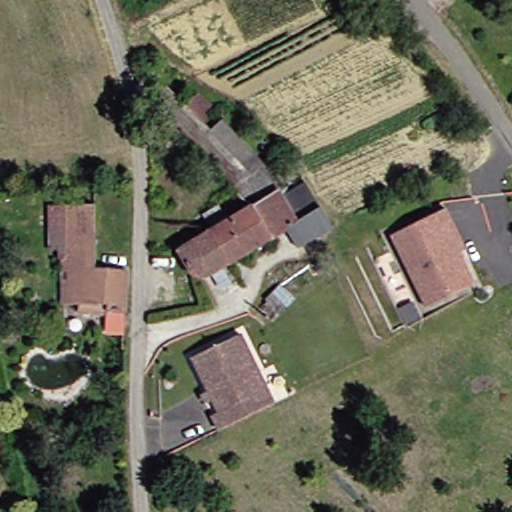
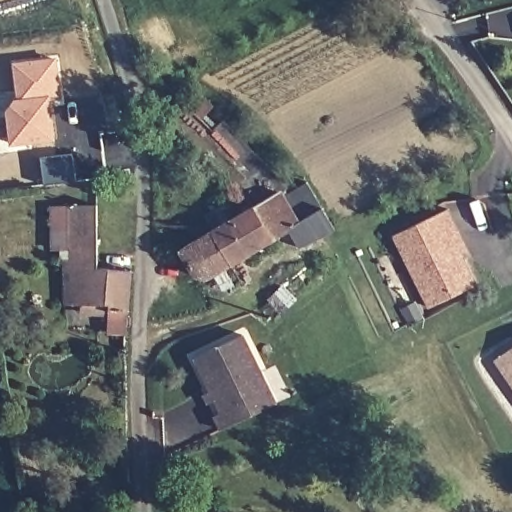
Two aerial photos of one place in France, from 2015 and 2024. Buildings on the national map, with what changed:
new [(61,101),(50,102),(55,142),(12,145),(8,108),(17,97),(14,63),(56,58),(61,101)]
new [(75,181),(44,184),(40,157),(72,155),(75,181)]
unchanged [(340,239),(328,245),(326,246),(305,255),(302,252),(295,235),(233,259),(220,230),(211,227),(219,225),(213,210),(224,205),(230,202),(235,217),(261,206),(261,207),(285,197),(290,195),(292,200),(317,188),(330,216),(338,235),(340,239)]
unchanged [(460,220),(470,244),(463,247),(478,278),(430,301),(396,227),(451,202),(460,220)]
unchanged [(62,271),(67,271),(66,240),(65,207),(91,206),(94,241),(95,268),(126,270),(126,278),(125,311),(102,311),(102,321),(96,320),(75,320),(76,303),(68,302),(64,302),(62,271)]
unchanged [(220,230),(233,259),(231,260),(220,266),(192,277),(175,240),(181,237),(211,227),(220,230)]
unchanged [(192,357),(240,335),(261,378),(263,383),(214,404),(192,357)]
new [(493,360),(512,348),(512,389),(493,360)]
unchanged [(219,426),(212,415),(217,412),(214,404),(263,383),(264,382),(272,401),(219,426)]

